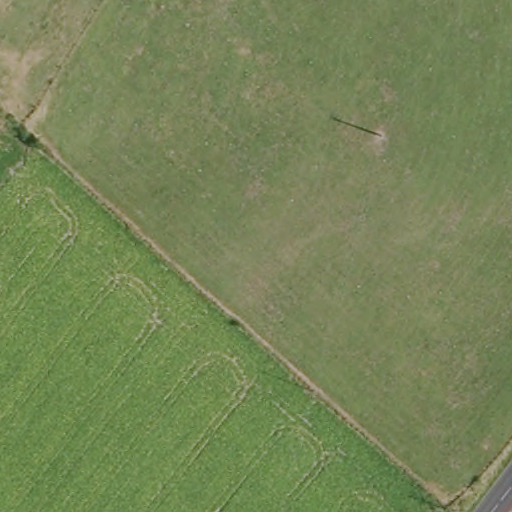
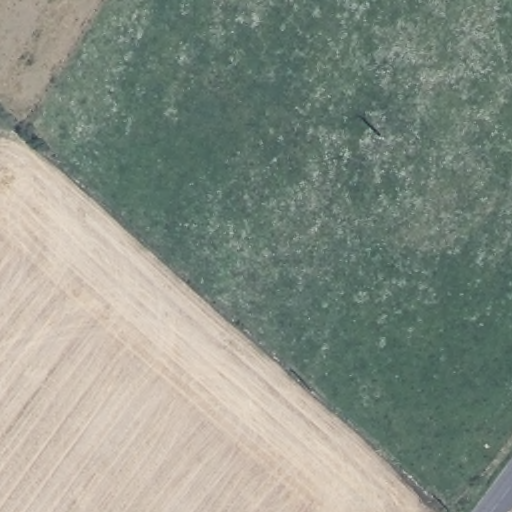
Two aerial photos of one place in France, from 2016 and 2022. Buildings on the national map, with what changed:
[]

